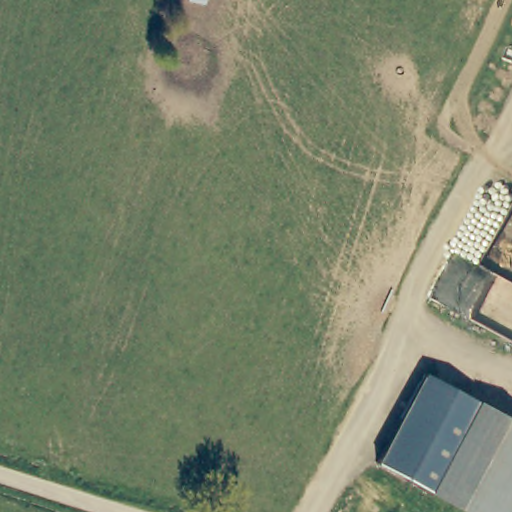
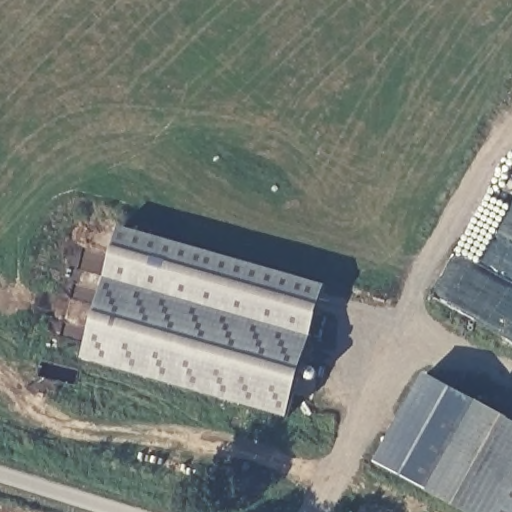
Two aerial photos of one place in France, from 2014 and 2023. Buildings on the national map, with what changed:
new [(289,418),(84,360),(120,226),(328,286),(289,418)]
unchanged [(476,395),(428,482),(374,454),(424,366),(476,395)]
unchanged [(512,416),(512,512),(480,512),(428,482),(476,395),(512,416)]

